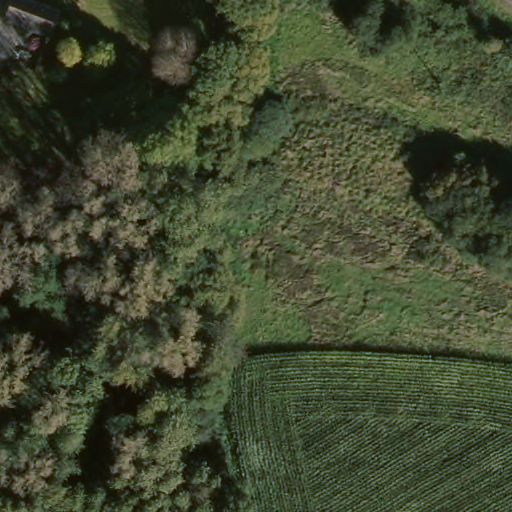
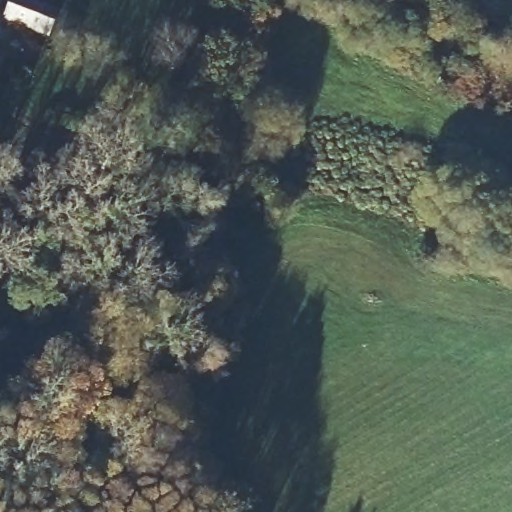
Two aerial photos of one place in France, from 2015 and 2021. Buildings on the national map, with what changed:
unchanged [(7,0),(18,0),(57,14),(47,40),(0,24),(0,18),(7,0)]

